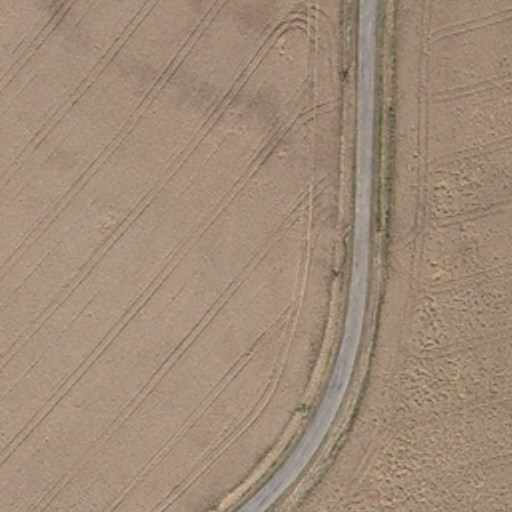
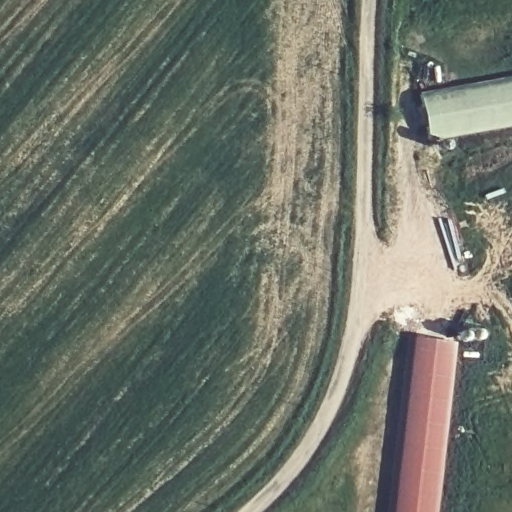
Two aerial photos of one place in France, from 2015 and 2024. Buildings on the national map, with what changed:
new [(421,96),(512,78),(512,126),(430,142),(421,96)]
new [(407,337),(455,342),(436,512),(387,512),(407,337)]

